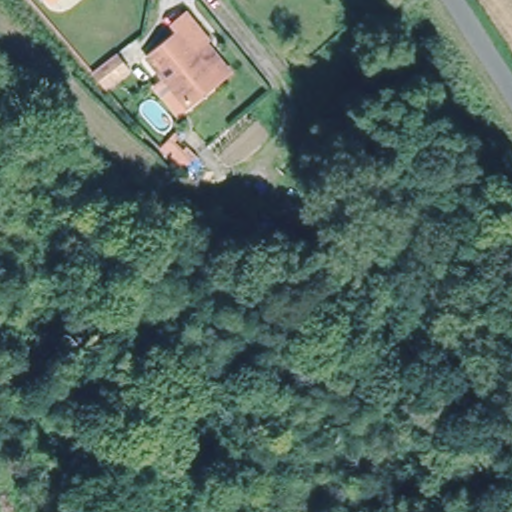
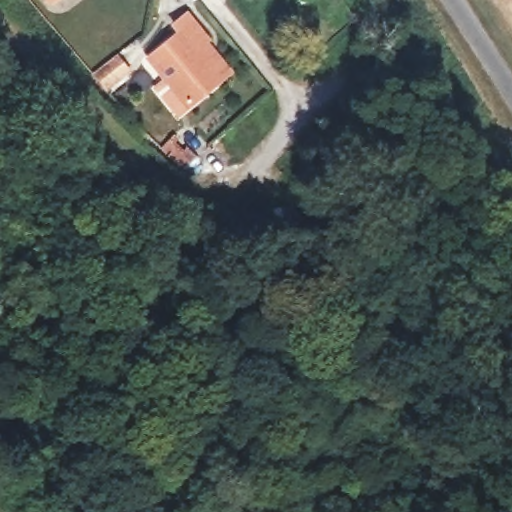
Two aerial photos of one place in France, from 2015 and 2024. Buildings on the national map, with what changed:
unchanged [(45,0),(48,0),(46,1),(45,0)]
unchanged [(156,82),(166,74),(149,53),(180,27),(174,19),(187,8),(207,32),(204,35),(229,66),(220,74),(188,100),(187,98),(177,106),(156,82)]
unchanged [(118,54),(130,68),(107,90),(93,73),(118,54)]

